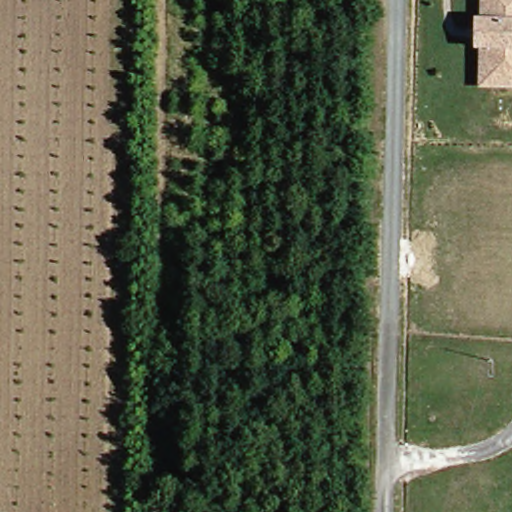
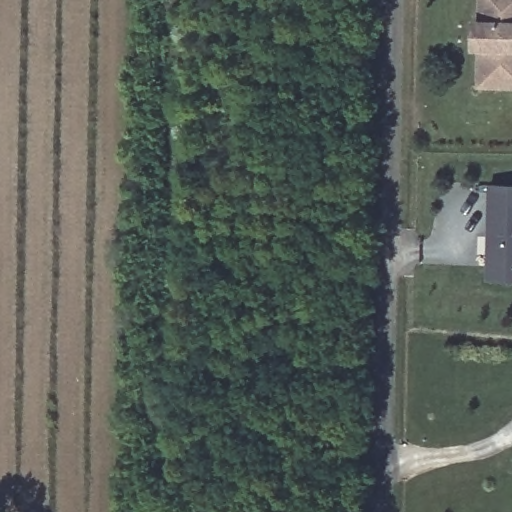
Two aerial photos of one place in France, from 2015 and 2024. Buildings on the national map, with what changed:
unchanged [(512,93),(477,92),(480,0),(512,0),(512,93)]
new [(492,185),(512,185),(512,282),(488,282),(492,185)]

